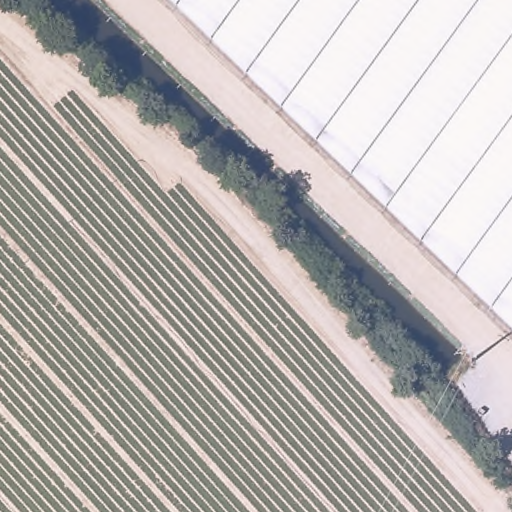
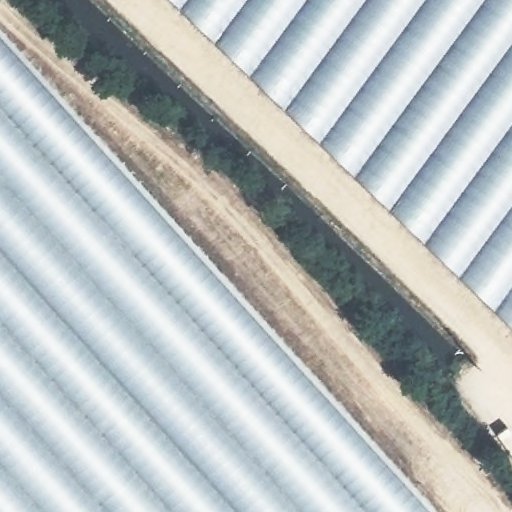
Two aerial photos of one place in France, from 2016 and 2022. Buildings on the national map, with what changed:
unchanged [(169,0),(512,0),(512,328),(283,109),(169,0)]
new [(430,512),(0,512),(0,38),(430,512)]

